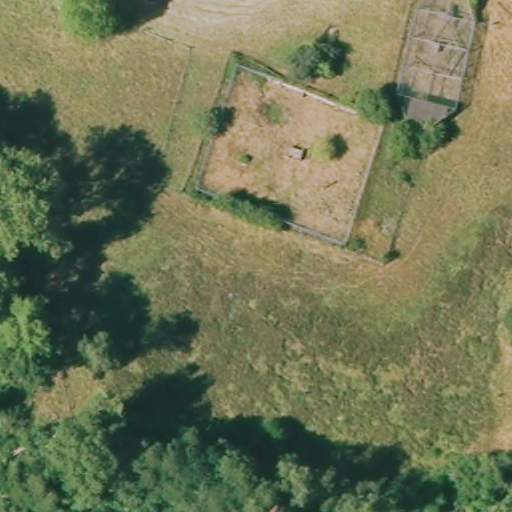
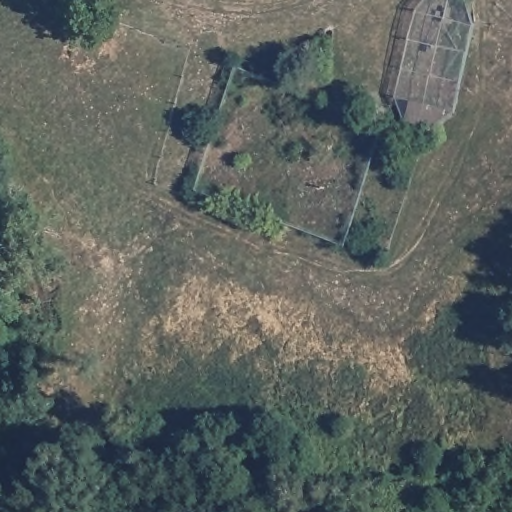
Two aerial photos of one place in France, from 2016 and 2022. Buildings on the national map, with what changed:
unchanged [(427,0),(469,0),(477,25),(457,113),(432,131),(405,120),(397,99),(417,12),(427,0)]

